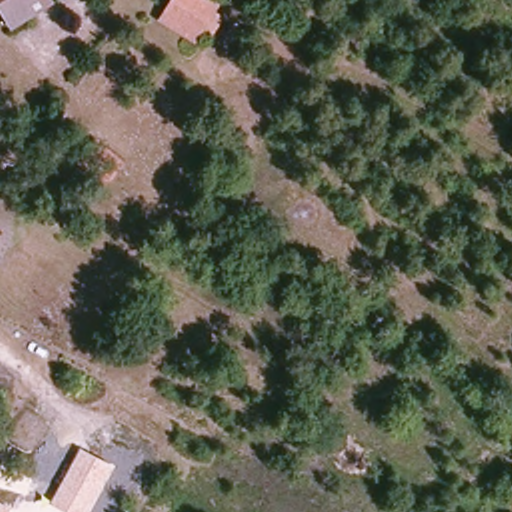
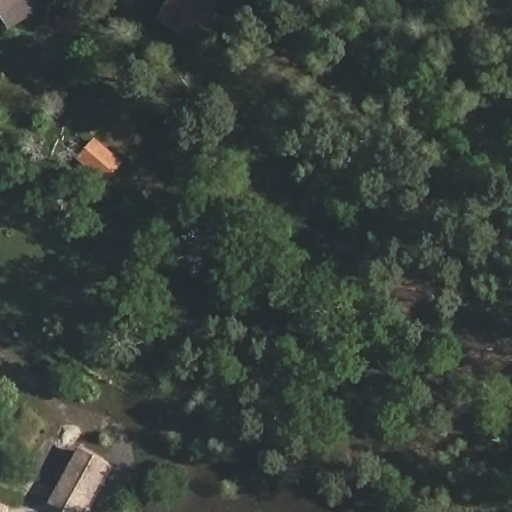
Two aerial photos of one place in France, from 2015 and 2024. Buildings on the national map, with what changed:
unchanged [(28,2),(36,18),(15,31),(0,5),(0,0),(32,0),(28,2)]
unchanged [(173,0),(219,0),(220,0),(205,24),(195,40),(161,20),(171,4),(173,0)]
unchanged [(119,162),(97,185),(68,159),(90,135),(119,162)]
unchanged [(63,512),(49,504),(80,447),(113,465),(88,512),(63,512)]

